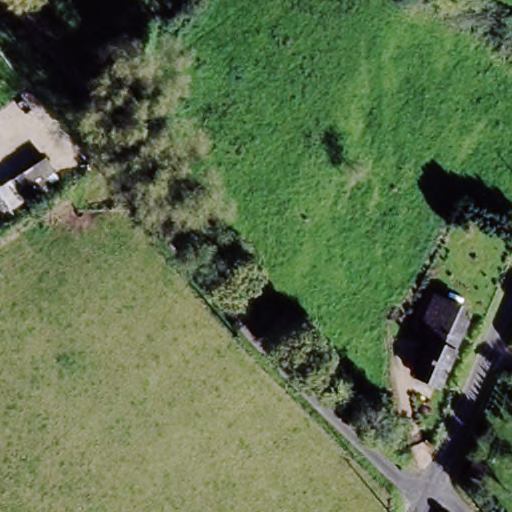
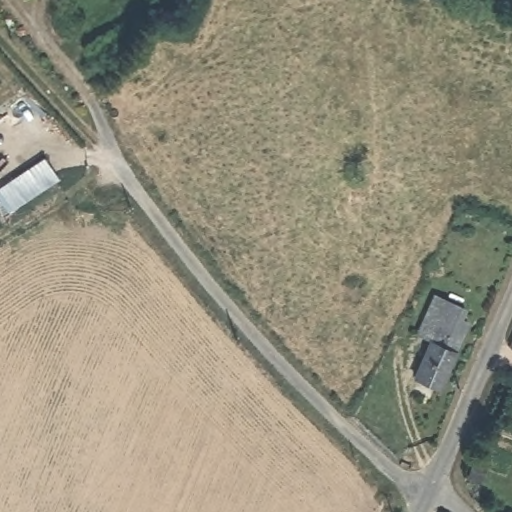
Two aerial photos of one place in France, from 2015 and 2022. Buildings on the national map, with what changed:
unchanged [(113,54),(125,66),(105,85),(94,71),(113,54)]
unchanged [(46,151),(60,171),(29,194),(16,174),(46,151)]
unchanged [(444,310),(462,317),(457,329),(464,332),(435,391),(411,380),(444,310)]

